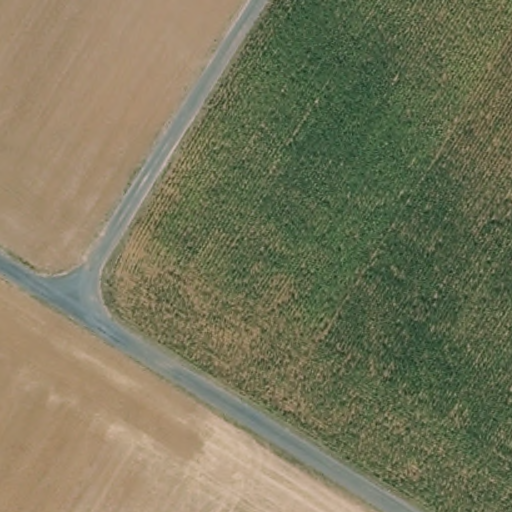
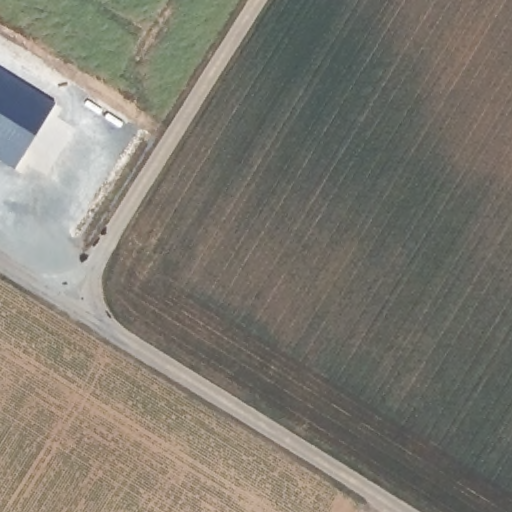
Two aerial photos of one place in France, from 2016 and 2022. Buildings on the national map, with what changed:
new [(15,170),(0,160),(0,71),(55,106),(15,170)]

